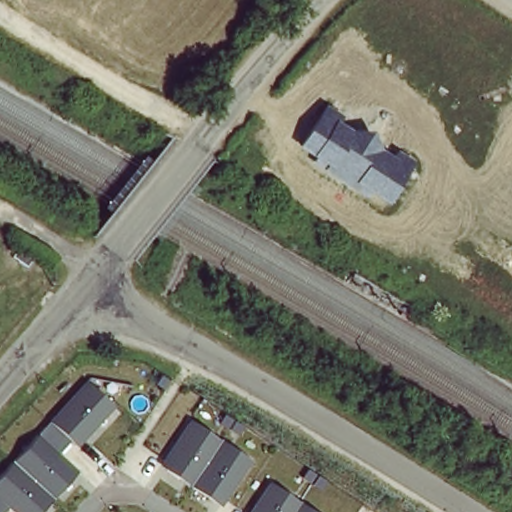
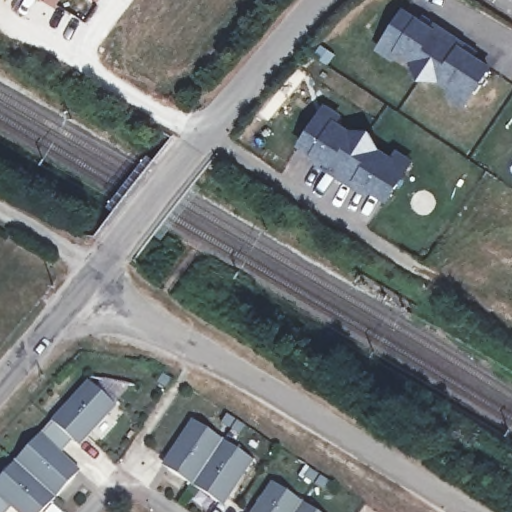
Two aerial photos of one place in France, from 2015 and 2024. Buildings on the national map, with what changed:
new [(57,7),(44,0),(61,0),(57,7)]
new [(93,0),(99,0),(98,2),(93,0)]
new [(448,95),(454,87),(455,88),(442,79),(442,80),(422,79),(415,62),(399,50),(400,51),(394,60),(380,50),(387,38),(403,12),(419,20),(433,30),(434,27),(463,45),(462,49),(476,59),(475,60),(489,69),(472,95),(464,106),(448,95)]
unchanged [(326,106),(343,117),(339,124),(394,159),(398,151),(415,163),(388,204),(370,193),(365,198),(313,164),(317,159),(298,146),(326,106)]
unchanged [(70,440),(60,452),(80,470),(44,512),(15,512),(11,508),(7,512),(0,512),(0,476),(86,380),(115,407),(80,449),(70,440)]
unchanged [(223,507),(160,465),(190,420),(254,461),(223,507)]
unchanged [(317,512),(249,512),(270,481),(317,512)]

